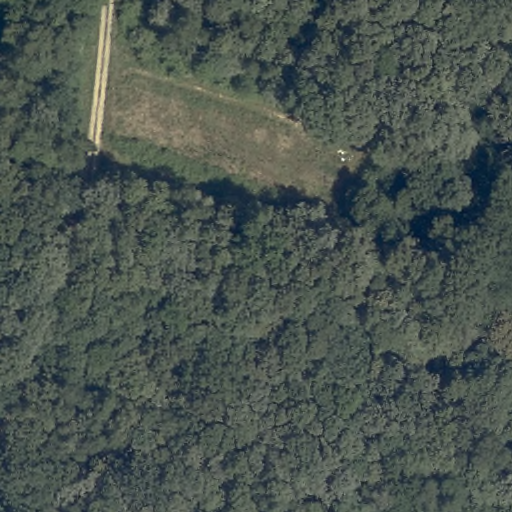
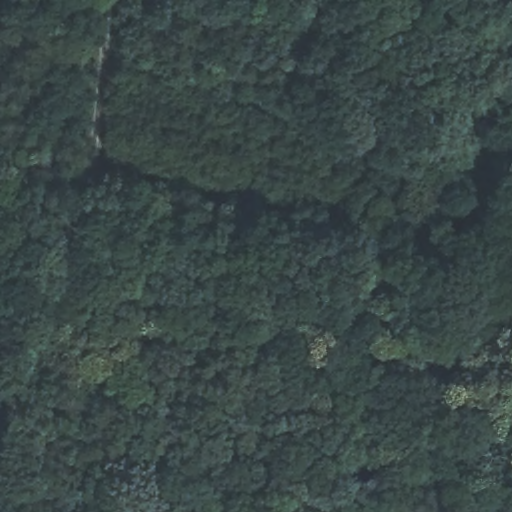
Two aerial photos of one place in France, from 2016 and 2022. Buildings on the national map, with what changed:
[]

